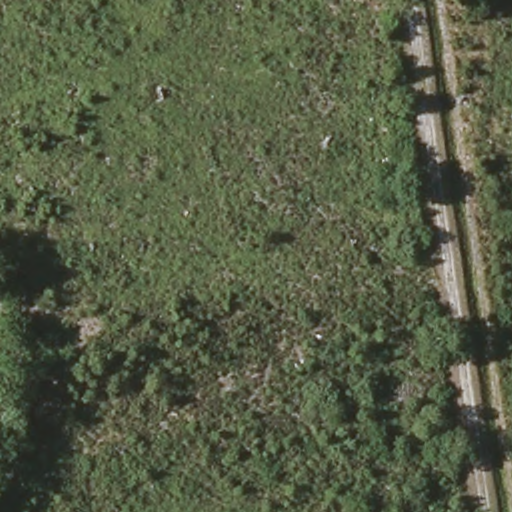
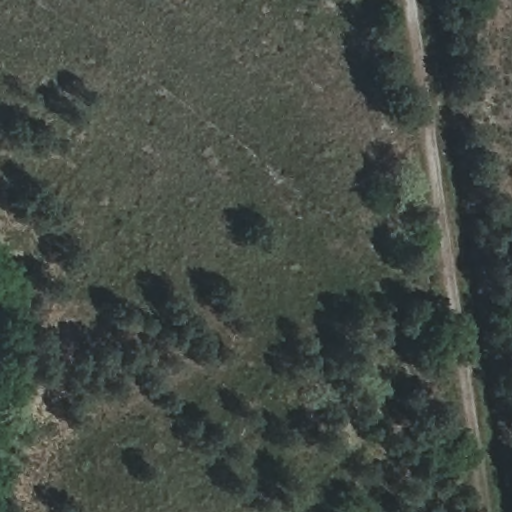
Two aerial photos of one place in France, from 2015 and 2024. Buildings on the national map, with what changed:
[]

